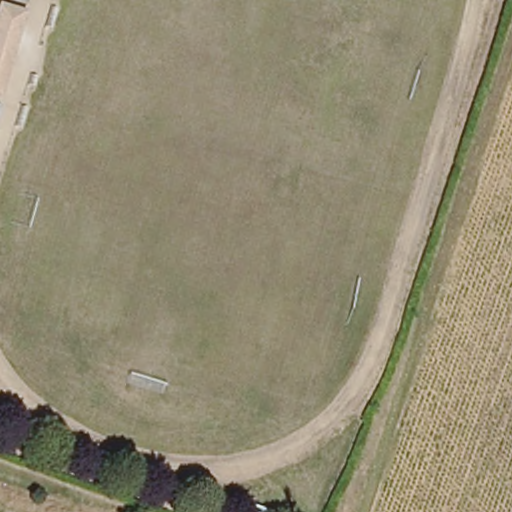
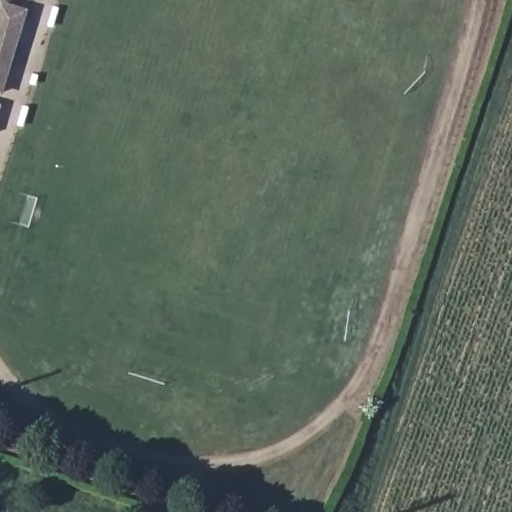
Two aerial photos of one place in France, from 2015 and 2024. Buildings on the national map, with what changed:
unchanged [(4,91),(0,89),(0,9),(2,1),(29,6),(22,29),(20,36),(11,65),(4,91)]

